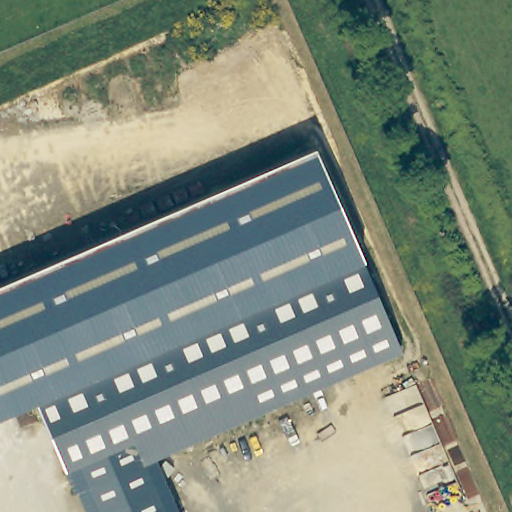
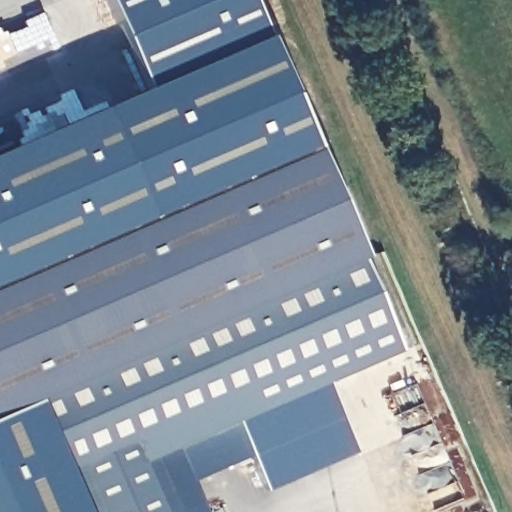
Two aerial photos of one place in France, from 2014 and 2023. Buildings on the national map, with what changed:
new [(0,156),(267,39),(314,149),(0,285),(0,156)]
unchanged [(35,403),(0,418),(0,285),(314,149),(363,261),(402,354),(157,459),(180,512),(83,512),(74,492),(35,403)]
new [(358,453),(267,493),(252,458),(195,483),(208,512),(180,512),(157,459),(235,426),(326,386),(358,453)]
new [(74,492),(83,512),(0,512),(0,418),(35,403),(74,492)]

